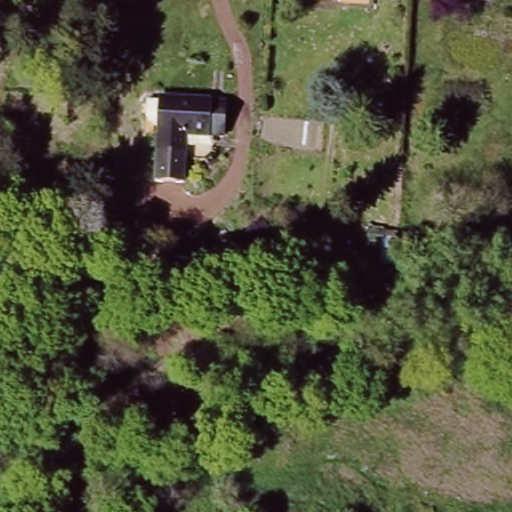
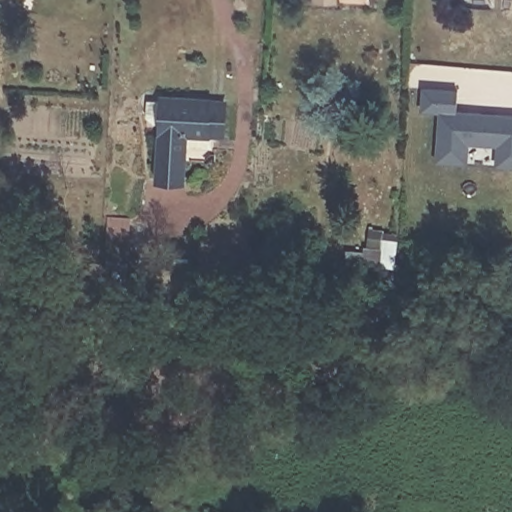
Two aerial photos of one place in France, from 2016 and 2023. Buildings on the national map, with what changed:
new [(496,167),(497,147),(470,145),(470,164),(435,162),(438,114),(421,113),(422,88),(458,89),(457,111),(512,114),(512,168),(496,167)]
unchanged [(223,139),(185,138),(185,185),(152,183),(155,97),(227,101),(223,139)]

